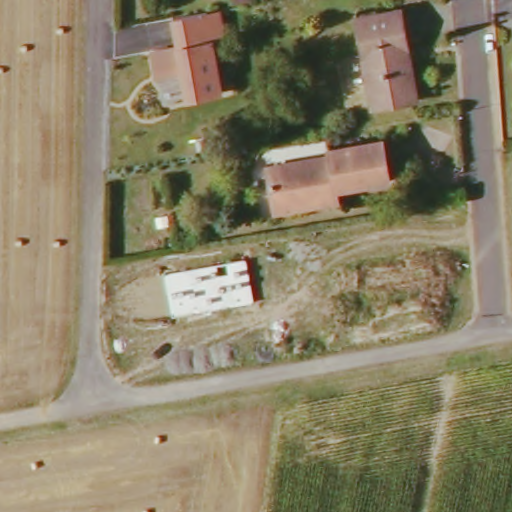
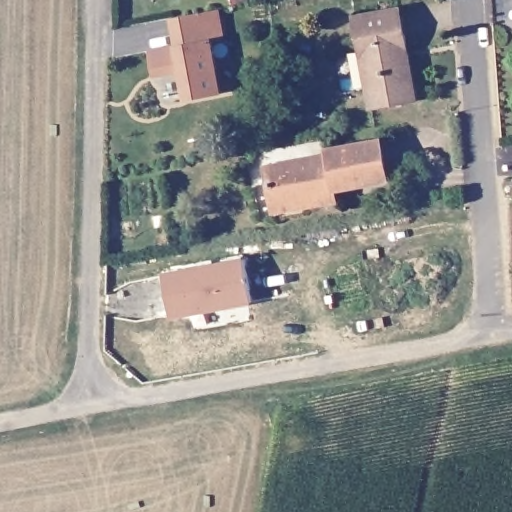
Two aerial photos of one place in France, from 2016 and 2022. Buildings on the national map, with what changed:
unchanged [(407,7),(423,101),(379,108),(360,17),(407,7)]
unchanged [(207,8),(223,88),(189,95),(183,66),(156,72),(152,48),(178,42),(172,14),(207,8)]
unchanged [(275,207),(269,169),(335,159),(333,153),(382,143),(390,187),(330,197),(331,208),(302,212),(277,217),(275,207)]
new [(244,258),(253,304),(171,318),(163,272),(244,258)]

